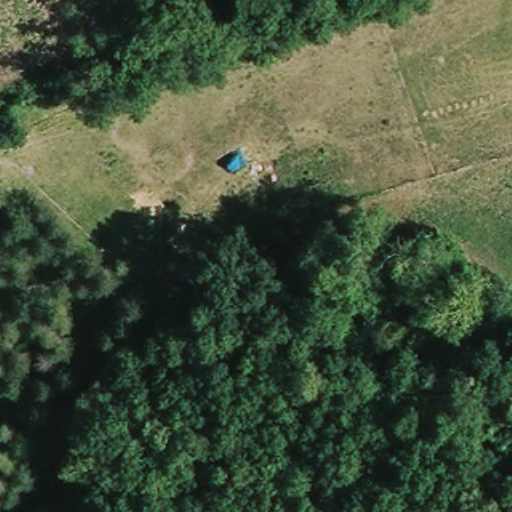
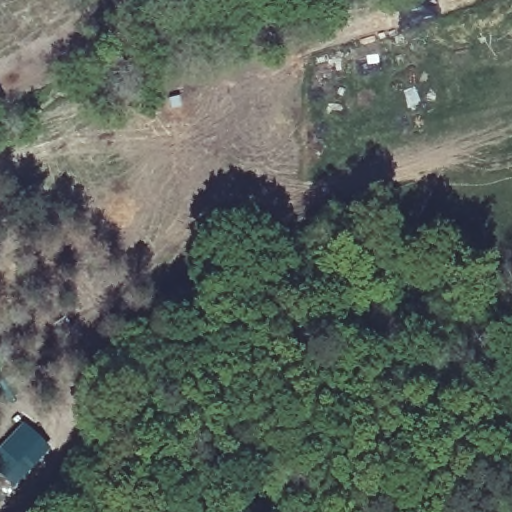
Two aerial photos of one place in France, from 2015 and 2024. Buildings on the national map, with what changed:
new [(12,489),(0,477),(0,450),(24,425),(50,448),(12,489)]

